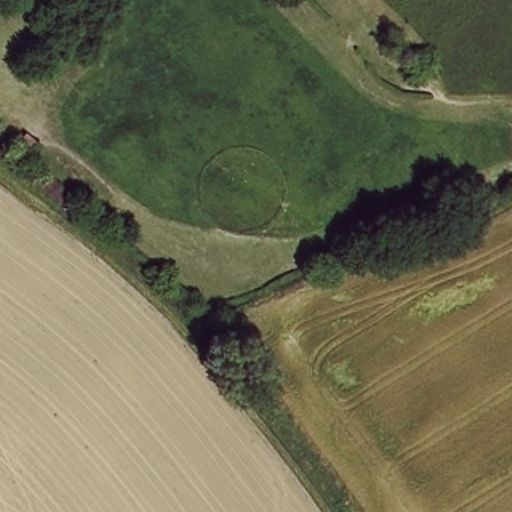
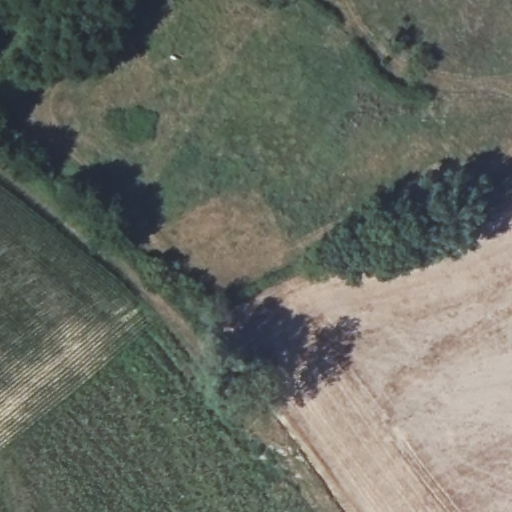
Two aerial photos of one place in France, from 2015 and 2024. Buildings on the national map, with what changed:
unchanged [(40,142),(28,156),(12,141),(23,129),(40,142)]

